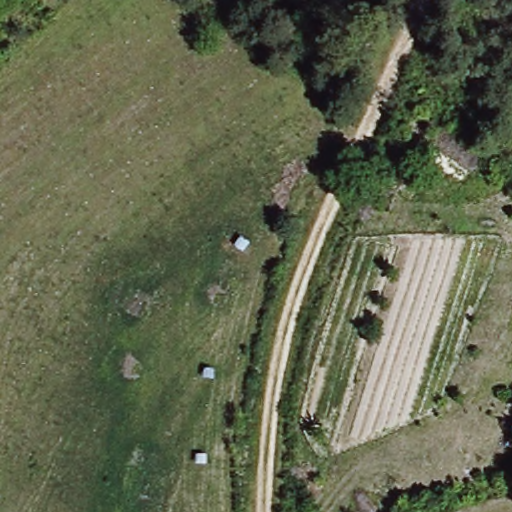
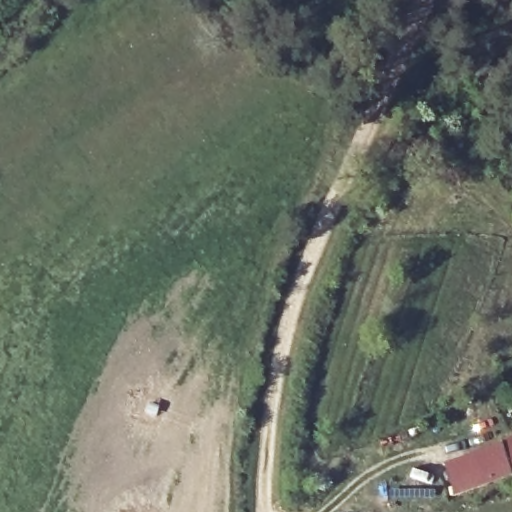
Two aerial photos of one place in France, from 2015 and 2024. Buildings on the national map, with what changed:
new [(444,462),(512,439),(512,472),(454,492),(444,462)]

